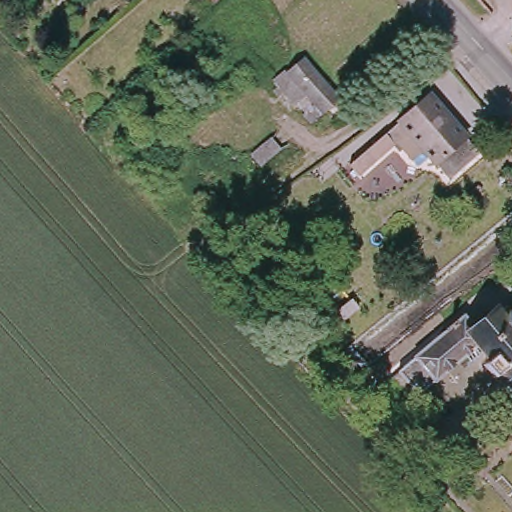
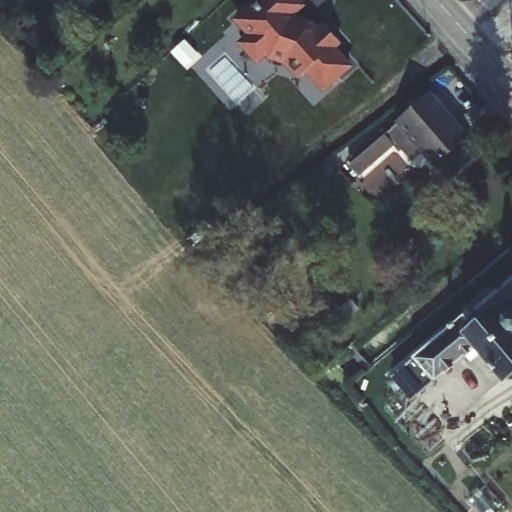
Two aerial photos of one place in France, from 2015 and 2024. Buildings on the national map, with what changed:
unchanged [(199,0),(204,0),(202,2),(199,0)]
unchanged [(211,0),(218,0),(215,4),(211,0)]
new [(294,15),(297,19),(313,24),(312,26),(319,33),(327,25),(342,42),(336,49),(352,66),(327,90),(311,71),(302,79),(288,62),(272,57),(269,54),(260,61),(244,44),(252,35),(239,20),(261,0),(299,0),(304,5),(294,15)]
demolished [(304,58),(341,101),(314,122),(299,105),(296,107),(275,83),(304,58)]
unchanged [(426,91),(475,147),(445,175),(421,146),(409,156),(392,138),(354,170),(346,160),(426,91)]
unchanged [(289,286),(299,298),(284,310),(274,299),(289,286)]
unchanged [(392,379),(400,373),(399,373),(465,317),(474,328),(497,310),(504,318),(512,311),(512,373),(505,379),(479,347),(419,396),(412,389),(406,395),(392,379)]

